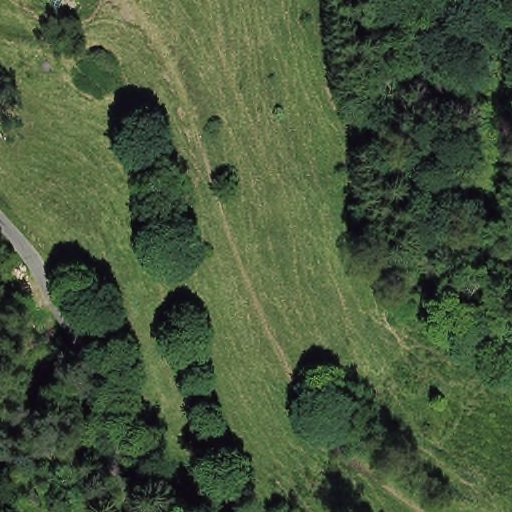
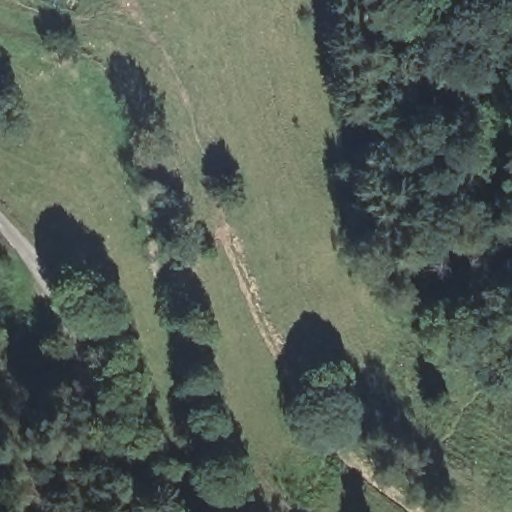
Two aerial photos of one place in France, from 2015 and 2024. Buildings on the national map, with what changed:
[]

